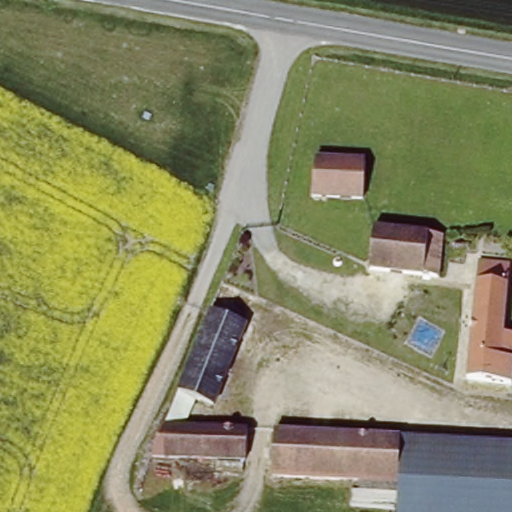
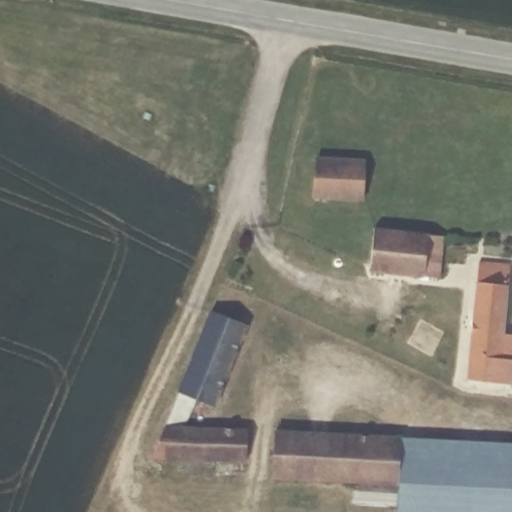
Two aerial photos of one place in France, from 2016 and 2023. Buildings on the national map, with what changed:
unchanged [(319,159),(369,162),(366,199),(315,195),(319,159)]
unchanged [(364,229),(435,238),(430,277),(361,268),(364,229)]
unchanged [(476,269),(504,270),(498,340),(512,341),(510,391),(467,388),(476,269)]
unchanged [(210,312),(245,325),(213,407),(193,401),(182,428),(248,431),(247,462),(151,457),(210,312)]
unchanged [(275,476),(277,432),(403,437),(402,457),(400,494),(359,492),(360,481),(275,476)]
unchanged [(512,440),(512,512),(400,512),(400,494),(402,457),(403,437),(512,440)]

